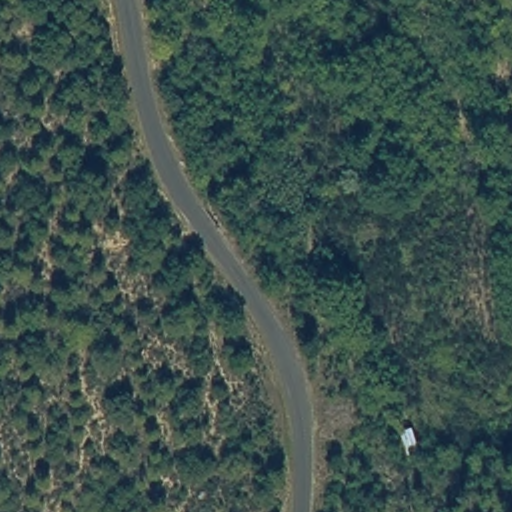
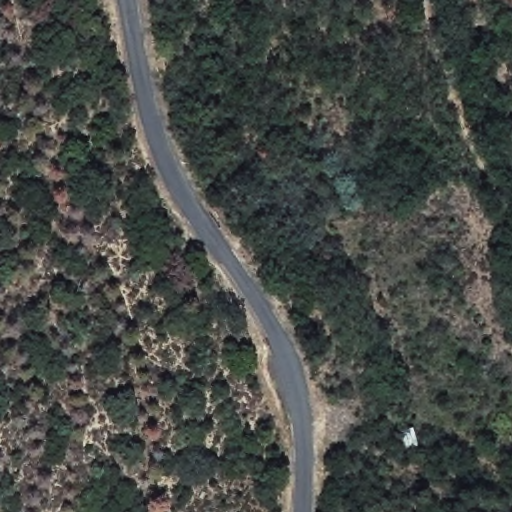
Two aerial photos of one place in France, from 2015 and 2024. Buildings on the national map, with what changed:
unchanged [(424,454),(405,457),(399,432),(414,425),(424,454)]

